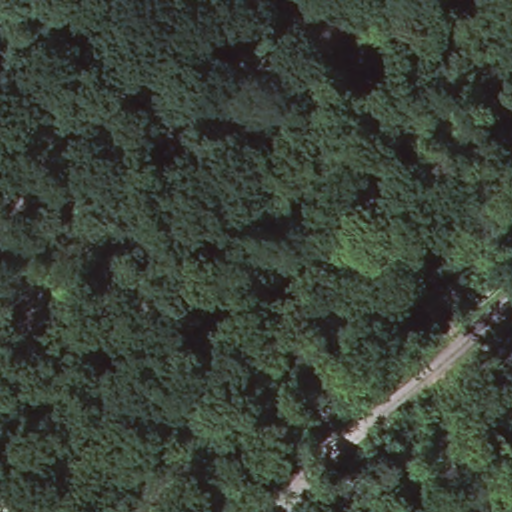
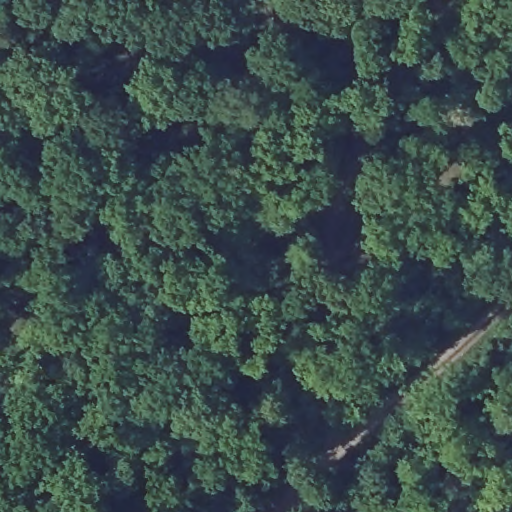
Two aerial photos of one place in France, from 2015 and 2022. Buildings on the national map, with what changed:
[]

